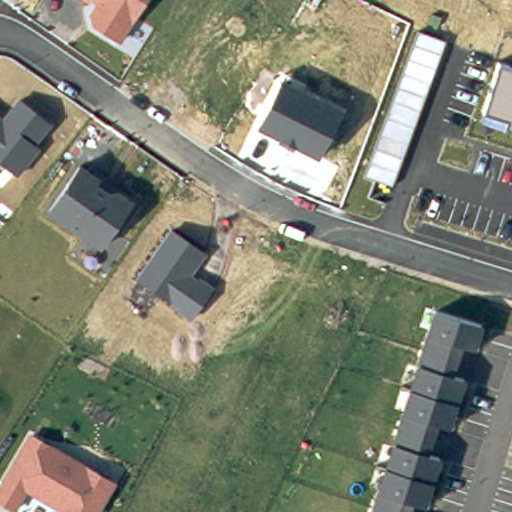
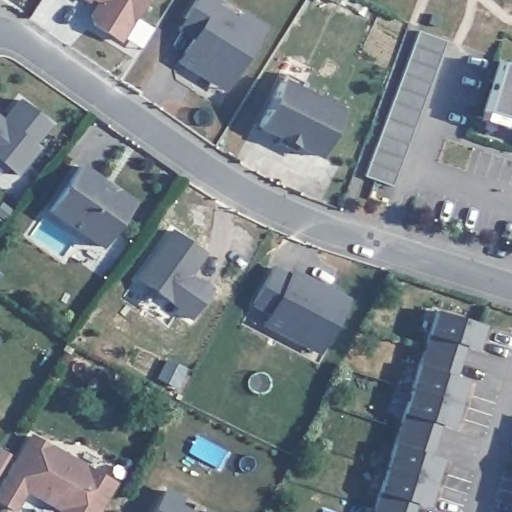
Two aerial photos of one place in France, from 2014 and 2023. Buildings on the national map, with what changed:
unchanged [(91,27),(88,10),(92,4),(86,0),(147,0),(119,45),(91,27)]
new [(224,93),(176,62),(191,40),(175,30),(194,0),(220,0),(218,4),(235,15),(240,9),(266,26),(224,93)]
unchanged [(447,41),(393,187),(366,175),(419,30),(447,41)]
unchanged [(499,61),(512,65),(512,129),(481,120),(499,61)]
unchanged [(343,107),(319,159),(256,126),(281,78),(343,107)]
unchanged [(3,118),(19,97),(54,124),(37,146),(40,149),(18,177),(0,163),(0,115),(3,118)]
unchanged [(133,199),(100,249),(44,212),(79,163),(133,199)]
unchanged [(208,254),(193,275),(213,289),(191,320),(135,279),(171,228),(208,254)]
new [(288,272),(291,267),(349,297),(319,356),(261,325),(266,314),(249,305),(271,263),(288,272)]
unchanged [(484,325),(477,349),(463,346),(454,376),(466,379),(451,429),(438,425),(429,454),(441,459),(426,509),(413,506),(411,512),(370,512),(434,309),(484,325)]
unchanged [(116,482),(100,512),(59,512),(27,493),(16,512),(13,512),(0,504),(0,485),(30,434),(116,482)]
new [(179,503),(198,512),(150,512),(163,486),(181,496),(179,503)]
new [(203,506),(214,512),(200,512),(203,506)]

